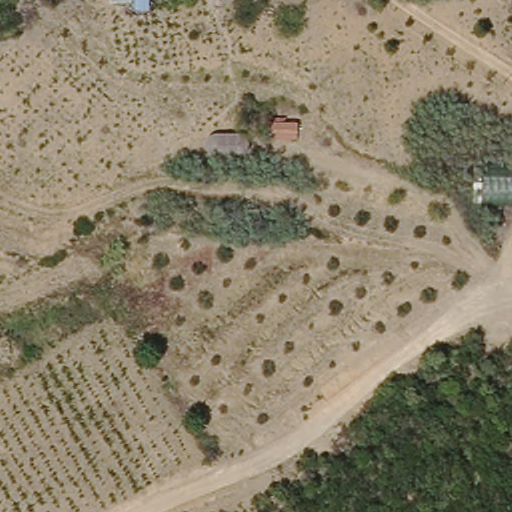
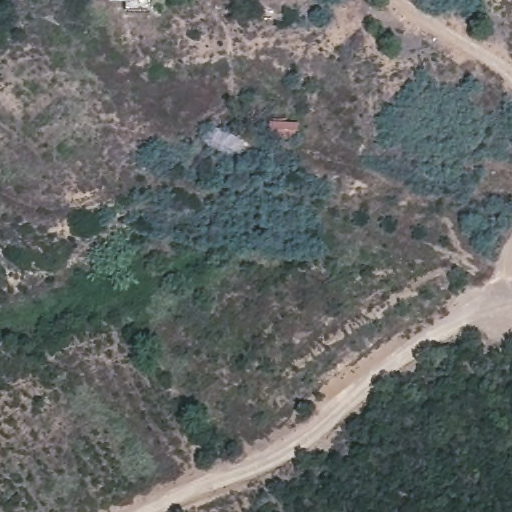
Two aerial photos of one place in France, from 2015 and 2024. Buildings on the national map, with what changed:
unchanged [(110,0),(145,0),(144,13),(133,15),(132,4),(109,3),(110,0)]
unchanged [(264,121),(296,122),(296,140),(264,135),(264,121)]
unchanged [(205,150),(204,131),(246,131),(246,152),(205,150)]
unchanged [(481,180),(482,162),(512,164),(512,205),(470,204),(469,180),(481,180)]

